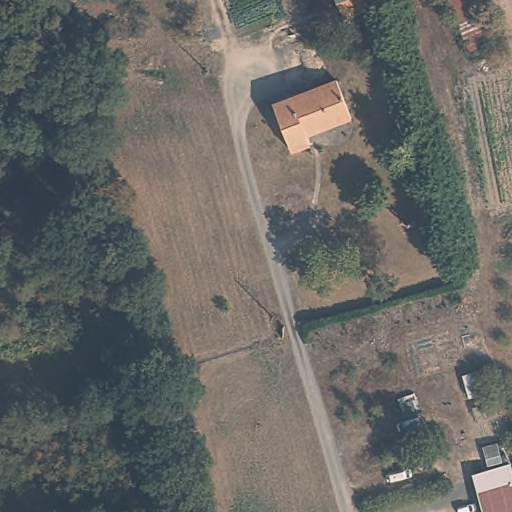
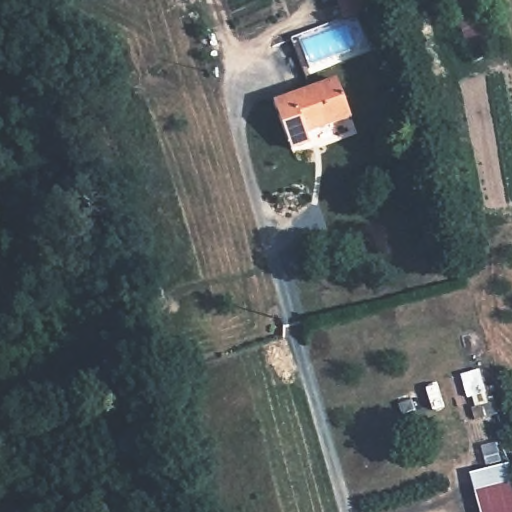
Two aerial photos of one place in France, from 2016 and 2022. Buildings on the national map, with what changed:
unchanged [(336,0),(385,0),(386,3),(343,19),(336,0)]
unchanged [(447,0),(478,0),(500,51),(472,62),(447,0)]
unchanged [(336,80),(350,118),(306,134),(310,144),(291,151),(273,104),(336,80)]
unchanged [(512,488),(512,512),(485,512),(480,497),(512,488)]

